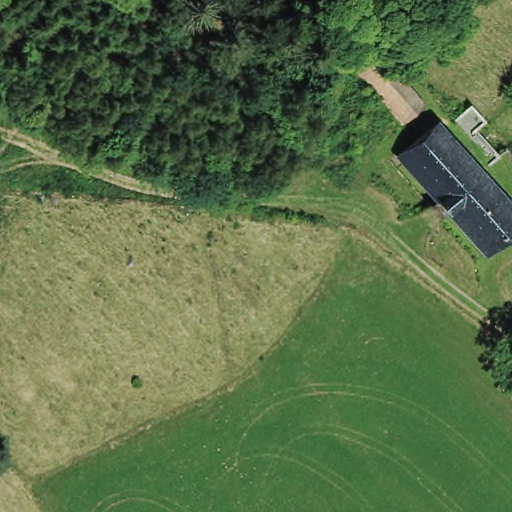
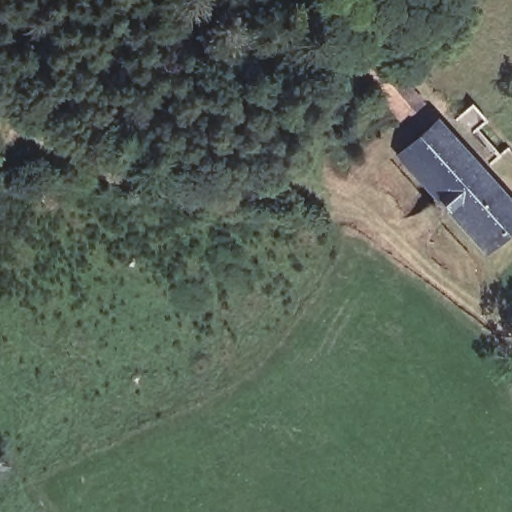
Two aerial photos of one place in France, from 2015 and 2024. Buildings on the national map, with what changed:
unchanged [(422,108),(402,124),(359,73),(381,54),(422,108)]
unchanged [(512,215),(512,233),(484,256),(397,164),(436,130),(512,215)]

